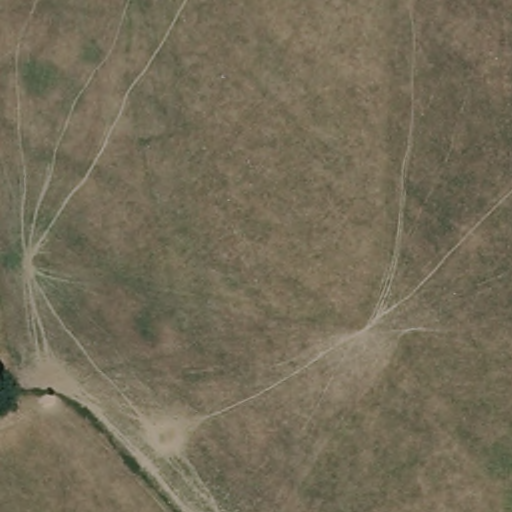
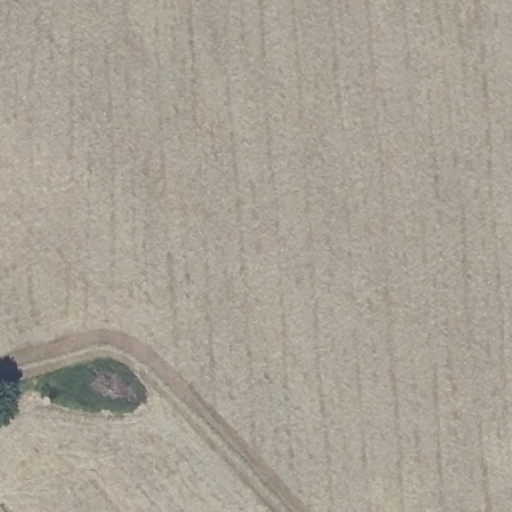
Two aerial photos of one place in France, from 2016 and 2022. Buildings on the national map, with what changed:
[]

